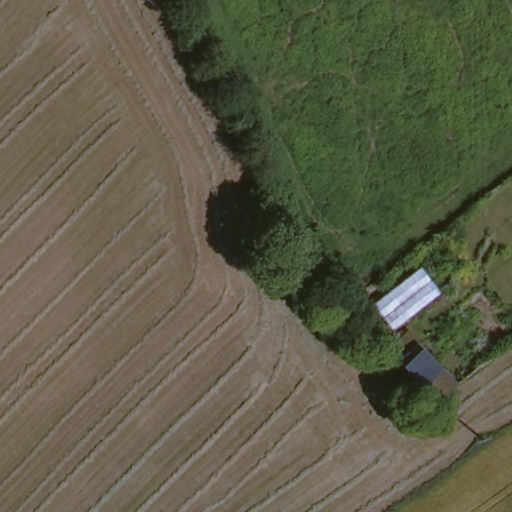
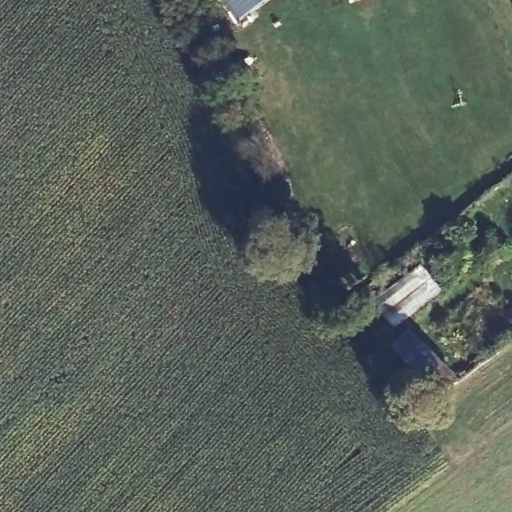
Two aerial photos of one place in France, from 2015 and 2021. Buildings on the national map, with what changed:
new [(253,8),(238,19),(224,0),(264,0),(253,8)]
unchanged [(381,306),(426,272),(444,297),(398,328),(381,306)]
unchanged [(449,391),(431,403),(414,382),(408,373),(403,368),(423,356),(449,391)]

